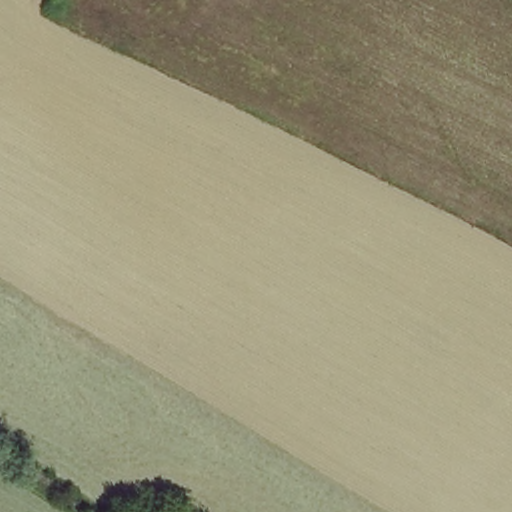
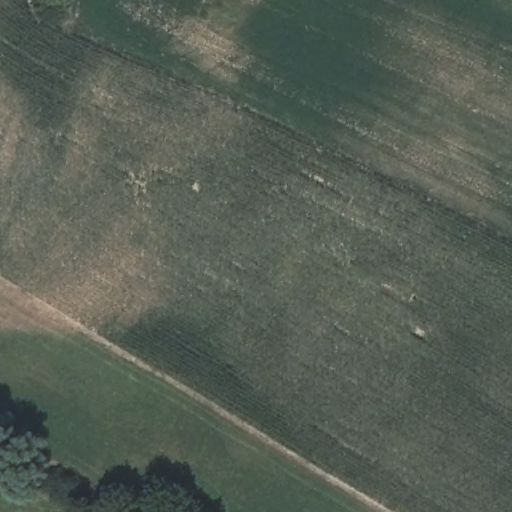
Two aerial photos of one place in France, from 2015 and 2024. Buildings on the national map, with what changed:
[]

